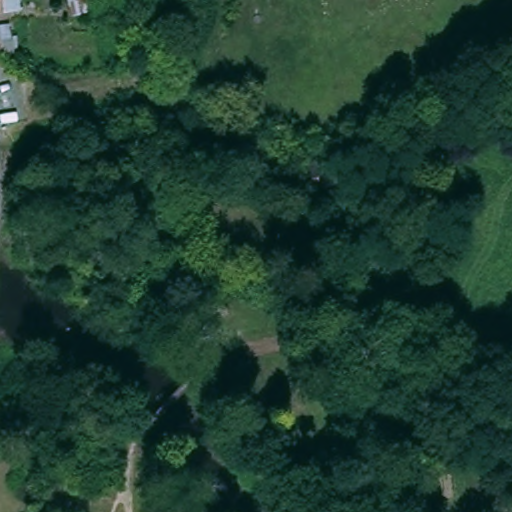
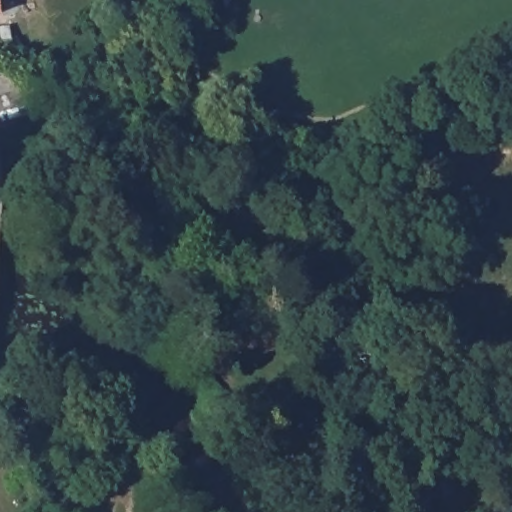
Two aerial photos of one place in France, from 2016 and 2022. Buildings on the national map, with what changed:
unchanged [(8,11),(0,12),(0,0),(6,0),(8,11)]
unchanged [(118,461),(114,480),(73,472),(78,452),(118,461)]

